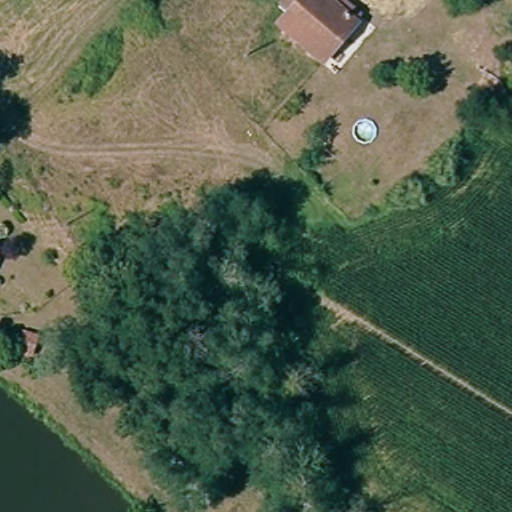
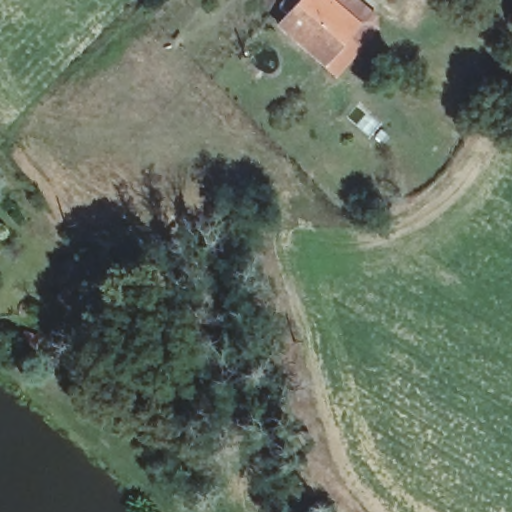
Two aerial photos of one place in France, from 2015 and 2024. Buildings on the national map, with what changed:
unchanged [(288,16),(276,4),(280,0),(300,0),(301,1),(303,0),(337,0),(338,0),(331,8),(355,30),(322,65),(276,29),(288,16)]
unchanged [(25,327),(42,337),(32,353),(15,343),(25,327)]

